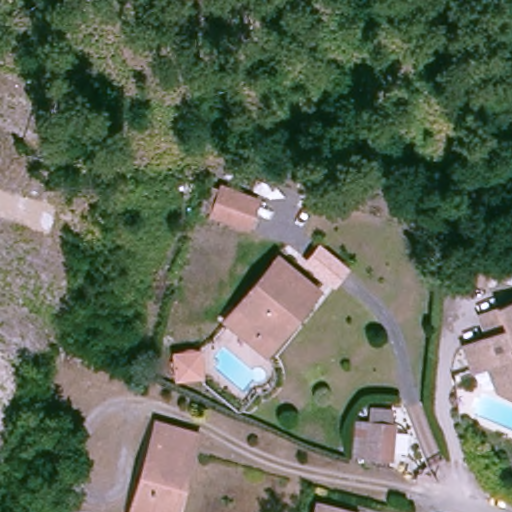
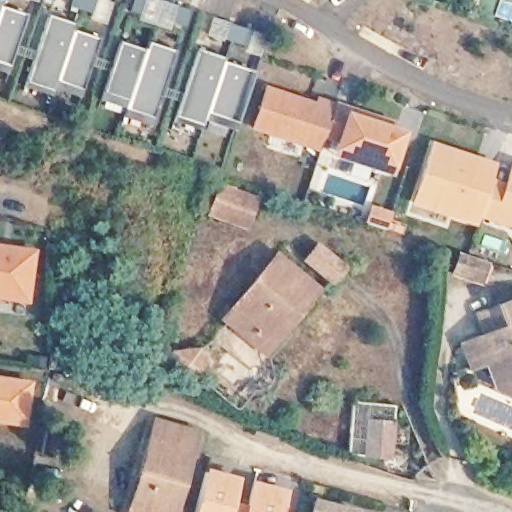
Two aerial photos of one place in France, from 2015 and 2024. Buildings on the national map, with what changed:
new [(2,5),(29,14),(11,64),(0,61),(0,0),(4,0),(2,5)]
new [(78,22),(75,30),(100,39),(84,89),(56,80),(53,90),(27,81),(50,13),(78,22)]
new [(147,49),(150,40),(177,50),(155,118),(102,100),(121,41),(147,49)]
new [(228,58),(227,62),(255,72),(239,121),(208,112),(204,125),(177,116),(200,48),(228,58)]
new [(265,90),(315,107),(317,101),(333,107),(323,137),(319,151),(252,129),(265,90)]
new [(333,107),(349,112),(347,117),(400,135),(390,168),(335,150),(337,141),(323,137),(333,107)]
new [(512,165),(512,228),(479,217),(476,225),(431,211),(413,205),(417,192),(432,147),(476,161),(495,167),(490,183),(505,187),(512,165)]
unchanged [(255,196),(246,225),(210,214),(219,184),(255,196)]
new [(370,212),(390,218),(385,232),(366,226),(370,212)]
new [(32,303),(0,299),(0,243),(39,248),(32,303)]
unchanged [(257,333),(234,315),(282,251),(323,283),(310,301),(298,314),(285,333),(273,345),(257,333)]
unchanged [(495,261),(488,280),(460,271),(465,252),(495,261)]
unchanged [(503,385),(495,361),(482,366),(472,342),(495,334),(486,313),(512,303),(512,389),(503,385)]
new [(200,353),(203,376),(178,378),(176,355),(200,353)]
new [(27,430),(0,425),(0,376),(34,381),(27,430)]
unchanged [(392,448),(366,445),(371,407),(396,411),(392,448)]
unchanged [(183,480),(176,508),(139,500),(160,421),(205,433),(191,483),(183,480)]
new [(290,512),(195,512),(207,468),(241,478),(236,497),(247,500),(252,479),(290,489),(285,508),(290,512)]
unchanged [(136,512),(139,500),(176,508),(183,480),(191,483),(184,512),(136,512)]
unchanged [(313,512),(316,497),(357,509),(356,512),(313,512)]

